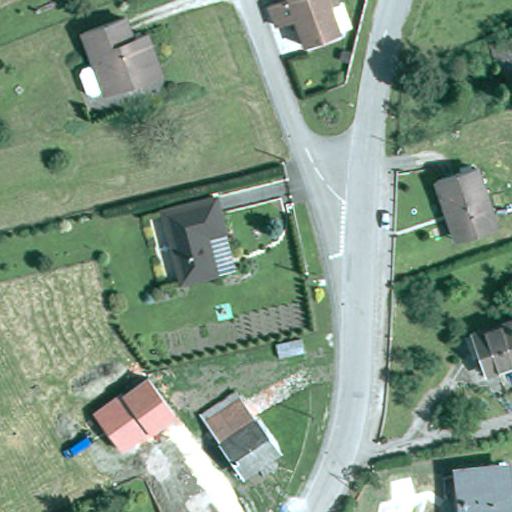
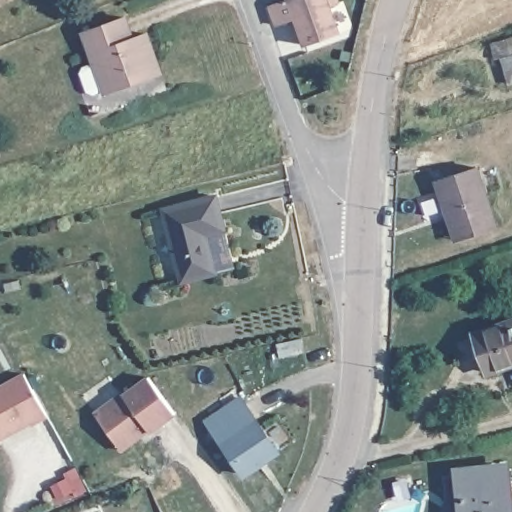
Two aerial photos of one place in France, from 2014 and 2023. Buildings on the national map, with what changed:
unchanged [(294,0),(329,0),(333,9),(325,12),(336,37),(301,49),(291,24),(272,31),(264,11),(284,4),(294,0)]
unchanged [(284,4),(283,0),(294,0),(284,4)]
unchanged [(153,73),(111,88),(109,85),(98,89),(90,85),(84,68),(88,60),(99,56),(89,28),(131,13),(138,34),(152,29),(160,51),(166,68),(153,73)]
unchanged [(511,84),(503,57),(496,59),(492,43),(512,37),(512,84),(511,84)]
unchanged [(449,208),(438,176),(477,162),(497,222),(463,233),(458,235),(449,208)]
unchanged [(216,272),(183,281),(164,210),(217,196),(226,229),(235,267),(216,272)]
unchanged [(488,368),(475,329),(512,317),(512,360),(488,368)]
unchanged [(301,339),(305,352),(280,358),(276,345),(301,339)]
new [(0,439),(0,384),(22,372),(45,414),(0,439)]
unchanged [(175,414),(121,450),(93,410),(118,392),(119,394),(148,375),(175,414)]
unchanged [(279,451),(246,476),(203,415),(236,391),(279,451)]
unchanged [(462,512),(458,472),(507,466),(512,505),(512,512),(462,512)]
new [(63,475),(75,469),(86,491),(74,497),(73,493),(60,499),(53,487),(66,480),(63,475)]

